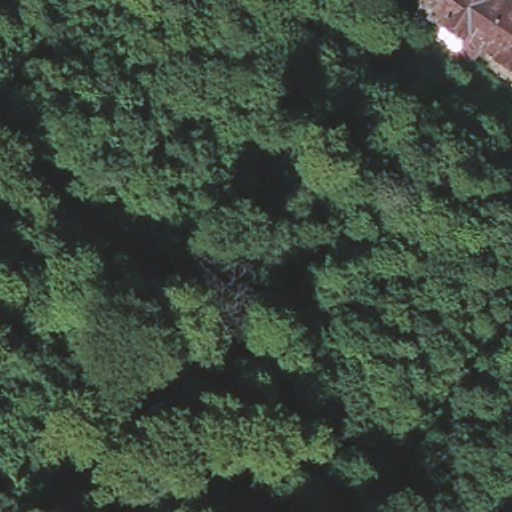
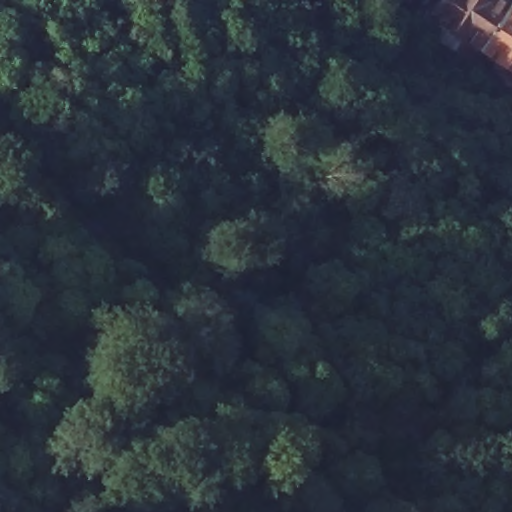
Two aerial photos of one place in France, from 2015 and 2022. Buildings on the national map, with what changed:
unchanged [(453,36),(421,15),(431,0),(497,0),(501,2),(471,46),(456,36),(453,36)]
unchanged [(512,10),(512,65),(507,72),(488,59),(488,57),(471,46),(501,2),(512,10)]

